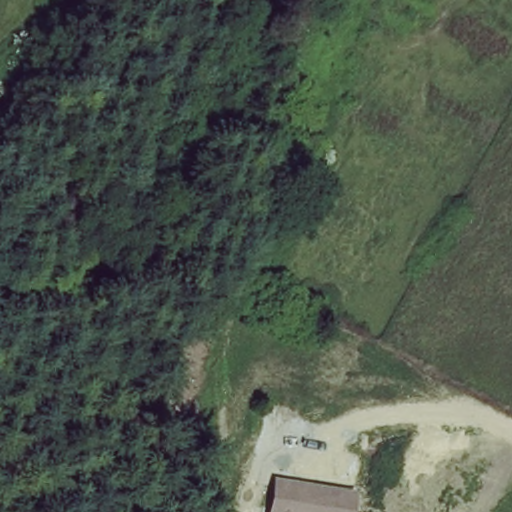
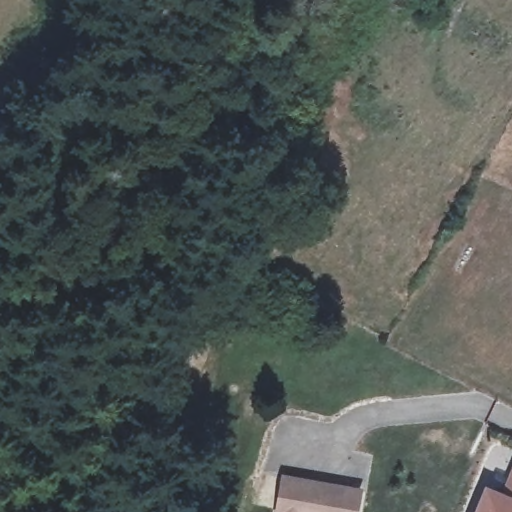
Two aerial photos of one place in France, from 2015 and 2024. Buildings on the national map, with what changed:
unchanged [(363,488),(359,512),(275,512),(282,475),(363,488)]
new [(507,493),(512,481),(512,512),(480,512),(491,487),(507,493)]

